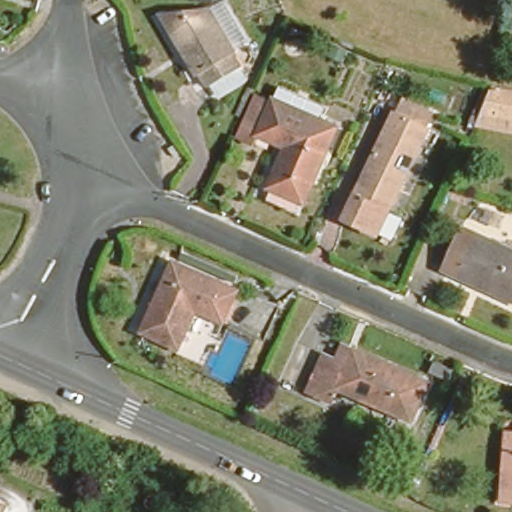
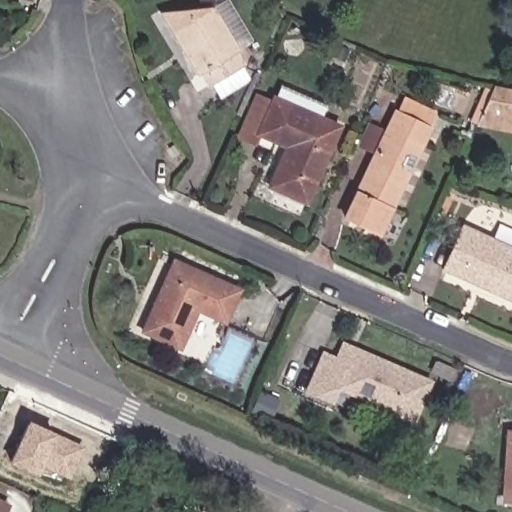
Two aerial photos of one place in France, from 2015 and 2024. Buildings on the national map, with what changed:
unchanged [(213,81),(207,85),(201,74),(191,73),(160,12),(213,7),(214,10),(229,4),(251,44),(236,53),(243,66),(250,79),(220,95),(213,81)]
unchanged [(478,117),(482,107),(495,78),(512,81),(512,122),(478,117)]
unchanged [(283,86),(327,106),(321,118),(340,127),(306,203),(267,186),(285,146),(258,134),(276,98),(283,86)]
unchanged [(258,134),(251,147),(230,138),(254,88),(276,98),(258,134)]
unchanged [(422,118),(372,229),(336,213),(387,102),(422,118)]
unchanged [(455,214),(512,241),(512,300),(434,262),(455,214)]
unchanged [(243,280),(228,312),(201,301),(184,343),(143,324),(176,250),(243,280)]
unchanged [(414,420),(337,385),(330,401),(305,388),(324,346),(347,356),(356,341),(434,377),(414,420)]
new [(36,478),(8,463),(28,420),(84,447),(69,479),(41,467),(36,478)]
unchanged [(499,496),(500,482),(502,425),(512,426),(512,497),(499,496)]
unchanged [(5,512),(0,512),(0,506),(6,509),(5,512)]

